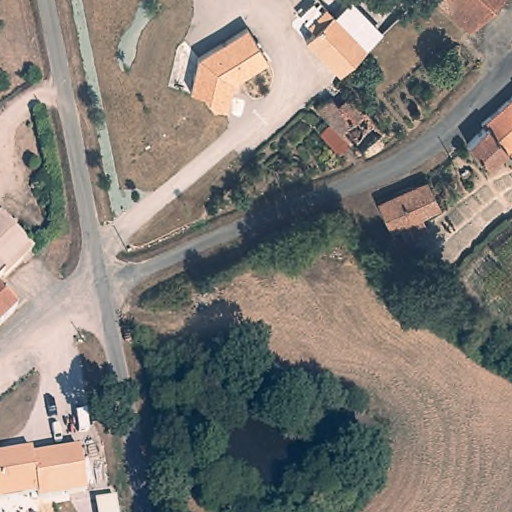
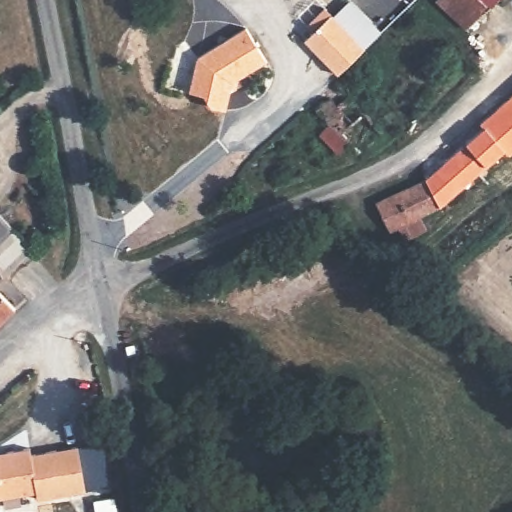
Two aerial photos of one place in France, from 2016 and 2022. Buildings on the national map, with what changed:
unchanged [(441,0),(498,0),(472,28),(441,0)]
unchanged [(367,51),(337,77),(305,40),(313,32),(306,24),(325,7),(367,51)]
unchanged [(264,61),(234,79),(228,110),(211,107),(206,95),(191,91),(195,61),(244,29),(264,61)]
unchanged [(466,147),(483,131),(479,127),(512,98),(512,148),(504,155),(503,154),(486,169),(466,147)]
unchanged [(328,127),(314,112),(329,100),(338,110),(346,101),(386,139),(356,157),(347,147),(337,156),(319,137),(328,127)]
unchanged [(410,250),(403,235),(394,240),(386,225),(379,210),(430,187),(444,215),(425,224),(432,238),(410,250)]
unchanged [(32,252),(3,280),(1,278),(0,279),(0,219),(13,232),(32,252)]
unchanged [(0,325),(0,296),(15,311),(0,325)]
unchanged [(31,455),(76,447),(85,492),(39,500),(37,493),(0,500),(0,453),(30,447),(31,455)]

